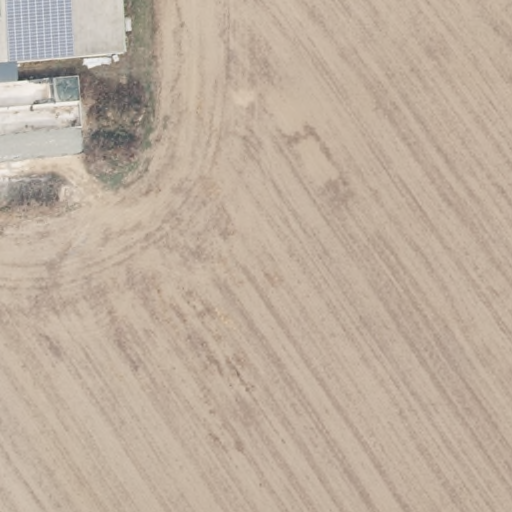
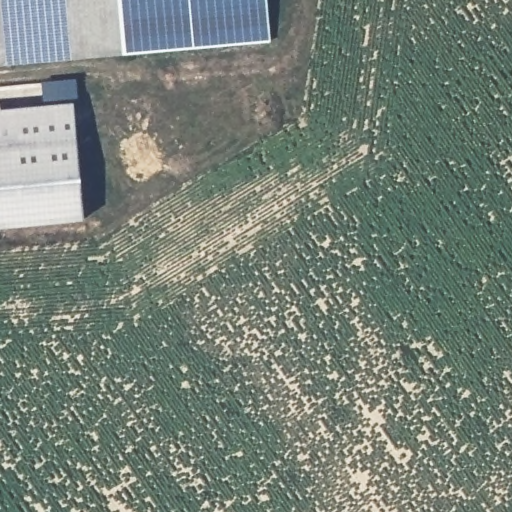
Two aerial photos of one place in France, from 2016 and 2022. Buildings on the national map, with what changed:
unchanged [(122,34),(123,54),(0,65),(0,0),(118,0),(122,34)]
new [(118,0),(267,0),(271,41),(123,54),(118,0)]
new [(85,220),(0,228),(0,108),(75,101),(85,220)]

